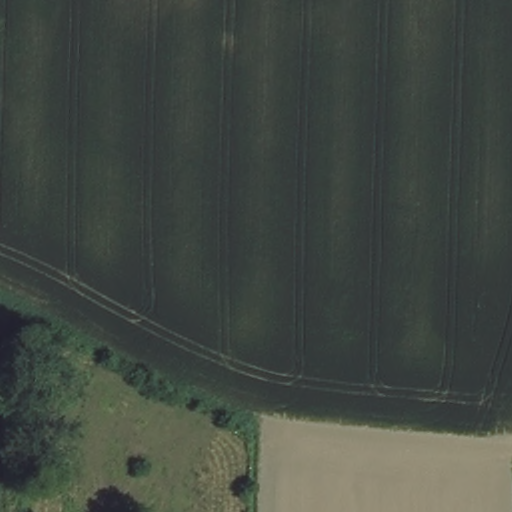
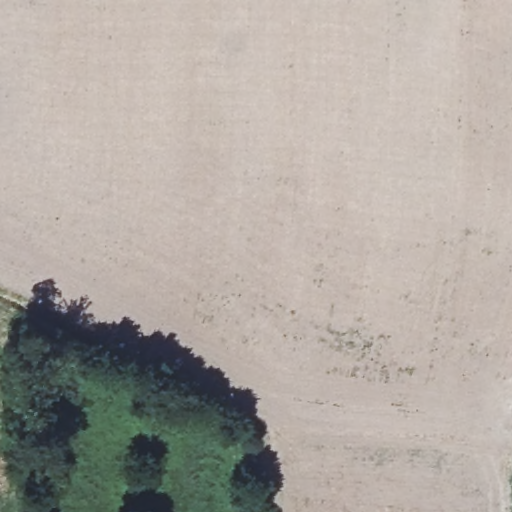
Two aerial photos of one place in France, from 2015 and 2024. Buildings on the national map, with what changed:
[]

